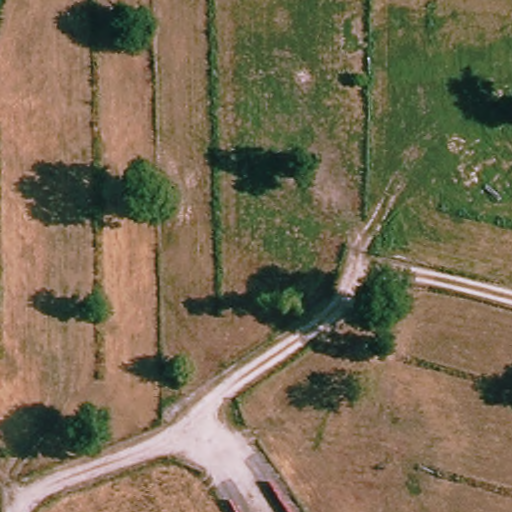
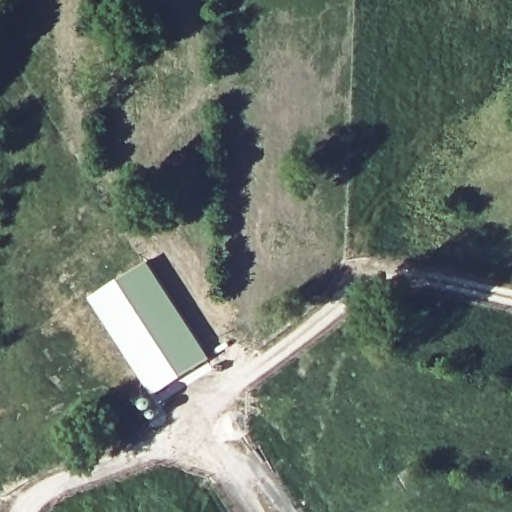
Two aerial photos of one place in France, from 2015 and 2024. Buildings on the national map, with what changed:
new [(147,261),(180,310),(210,359),(153,398),(135,373),(87,298),(147,261)]

